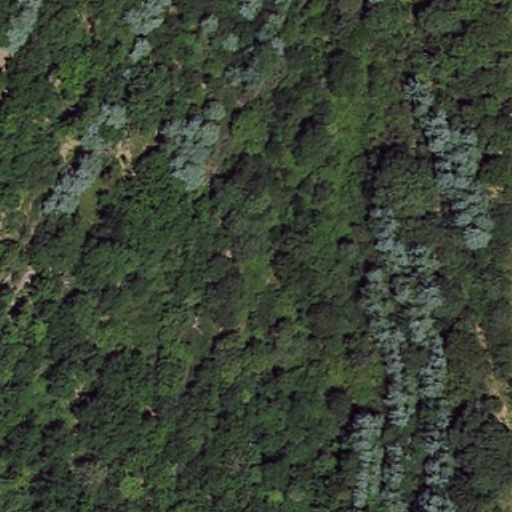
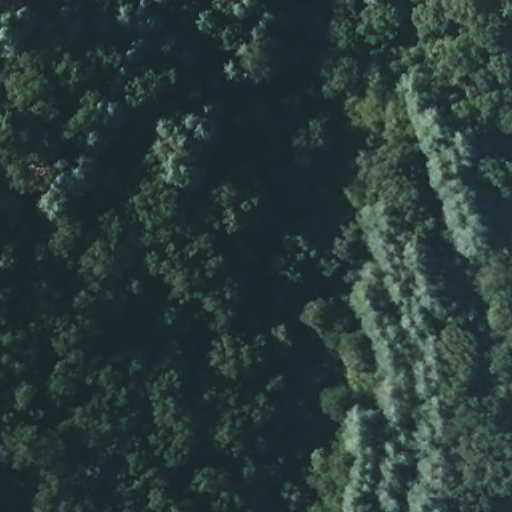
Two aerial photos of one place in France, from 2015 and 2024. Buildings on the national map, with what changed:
[]

